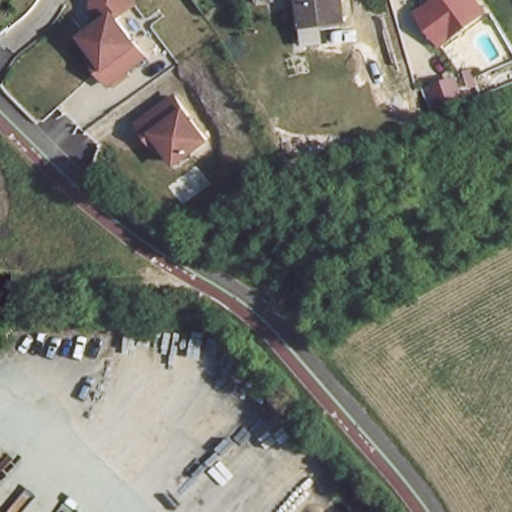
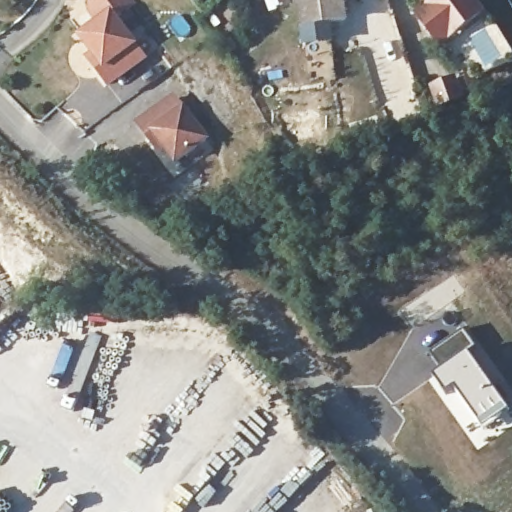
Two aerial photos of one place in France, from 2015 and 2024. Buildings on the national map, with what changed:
unchanged [(136,3),(118,17),(115,14),(98,26),(87,11),(88,0),(134,0),(136,3)]
unchanged [(348,20),(304,25),(300,0),(345,0),(348,20)]
unchanged [(421,13),(431,6),(438,0),(477,0),(486,11),(460,31),(444,43),(421,13)]
unchanged [(96,52),(85,35),(115,14),(146,58),(109,83),(95,63),(90,56),(96,52)]
unchanged [(151,139),(138,119),(174,94),(205,138),(175,159),(163,142),(156,146),(151,139)]
new [(482,430),(455,389),(445,395),(432,376),(439,371),(427,353),(462,328),(476,346),(468,352),(510,411),(482,430)]

